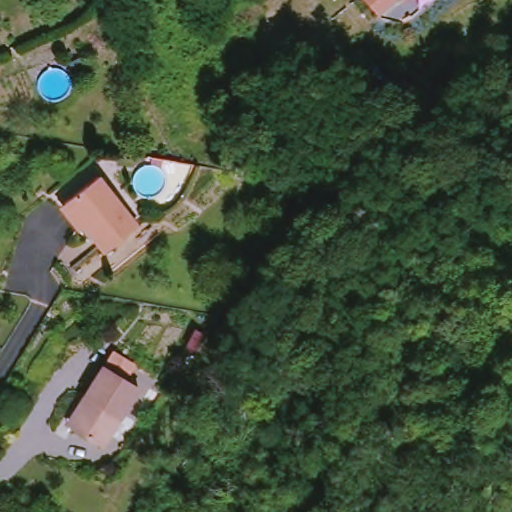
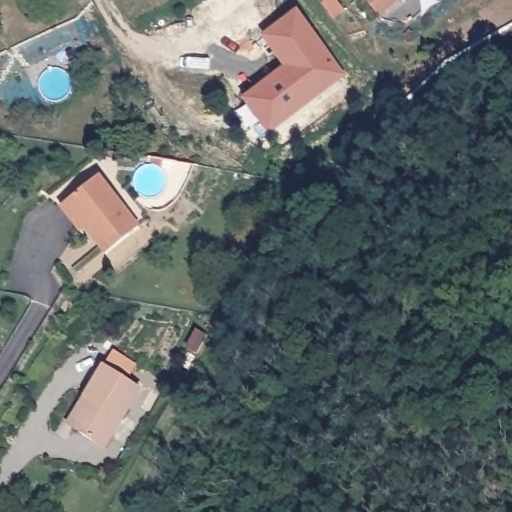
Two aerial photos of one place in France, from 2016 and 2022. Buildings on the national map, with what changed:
unchanged [(403,0),(418,0),(409,7),(403,0)]
new [(289,66),(268,37),(296,16),(339,75),(272,132),(248,99),(289,66)]
unchanged [(103,181),(144,232),(110,258),(96,240),(92,244),(83,234),(88,230),(70,208),(103,181)]
unchanged [(89,401),(109,372),(110,372),(119,357),(124,361),(139,370),(131,384),(144,394),(108,452),(78,433),(73,429),(89,401)]

